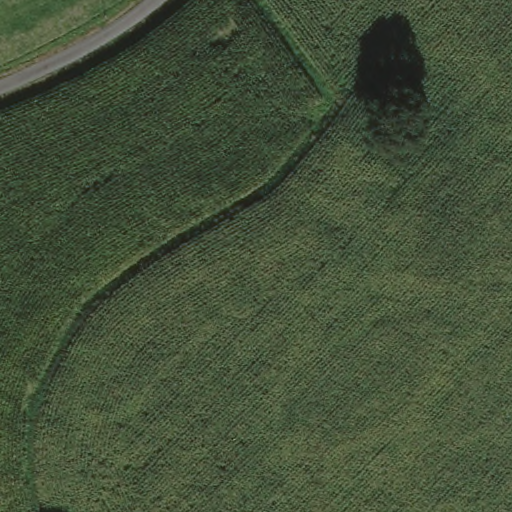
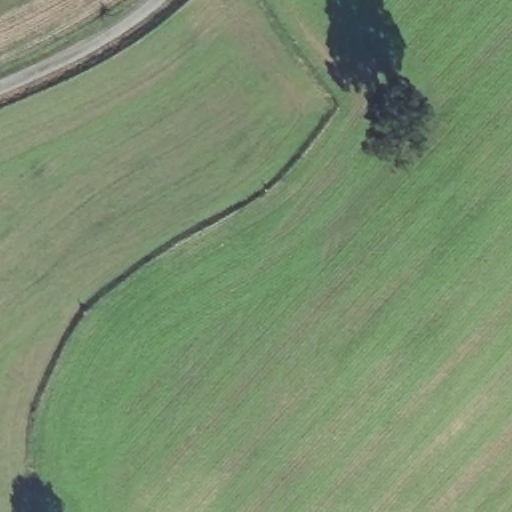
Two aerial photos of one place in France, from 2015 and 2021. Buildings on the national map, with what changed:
[]

